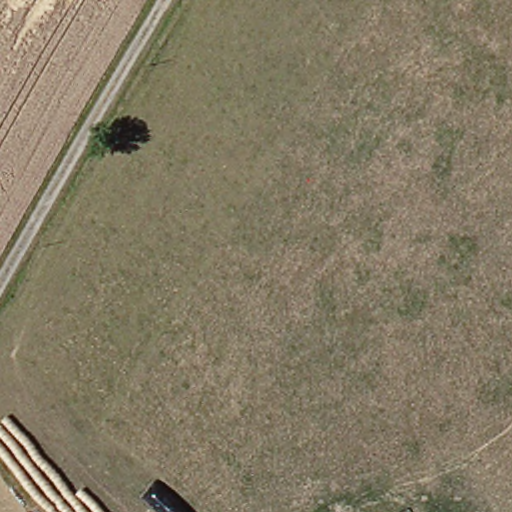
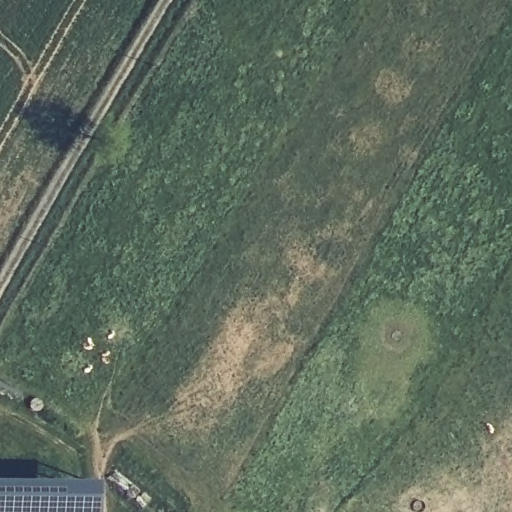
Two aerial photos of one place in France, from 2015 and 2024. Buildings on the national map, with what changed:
new [(95,480),(94,512),(0,512),(0,479),(95,480)]

